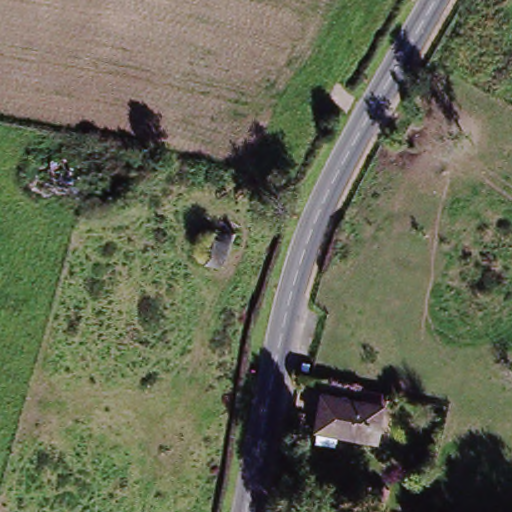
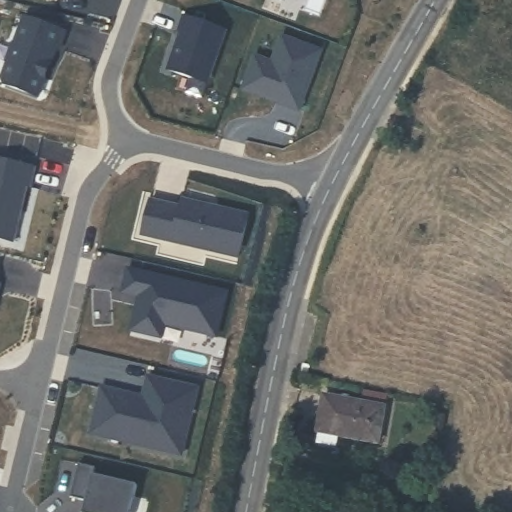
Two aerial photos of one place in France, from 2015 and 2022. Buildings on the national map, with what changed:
new [(282,0),(283,0),(283,1),(282,0)]
new [(168,70),(182,32),(180,32),(185,17),(226,32),(207,84),(168,70)]
new [(255,57),(272,63),(282,37),(322,52),(301,107),(278,99),(276,103),(242,91),(255,57)]
demolished [(18,186),(27,138),(77,148),(72,174),(85,177),(95,180),(90,199),(77,197),(18,186)]
new [(31,187),(27,186),(14,242),(0,239),(0,158),(36,167),(31,187)]
demolished [(119,185),(116,203),(97,200),(101,181),(119,185)]
new [(150,201),(181,208),(183,200),(250,216),(240,257),(142,234),(150,201)]
demolished [(219,234),(236,241),(224,270),(206,263),(219,234)]
new [(228,293),(217,337),(165,325),(162,338),(132,331),(138,306),(140,306),(142,297),(124,292),(130,270),(228,293)]
new [(98,411),(103,387),(138,396),(137,402),(144,403),(150,377),(199,388),(183,455),(109,437),(92,433),(98,411)]
unchanged [(390,403),(383,438),(322,427),(328,392),(390,403)]
new [(80,465),(96,468),(95,476),(138,487),(132,512),(85,512),(87,502),(71,498),(80,465)]

